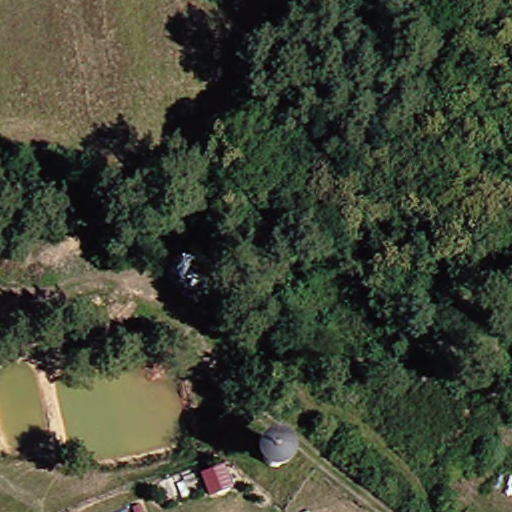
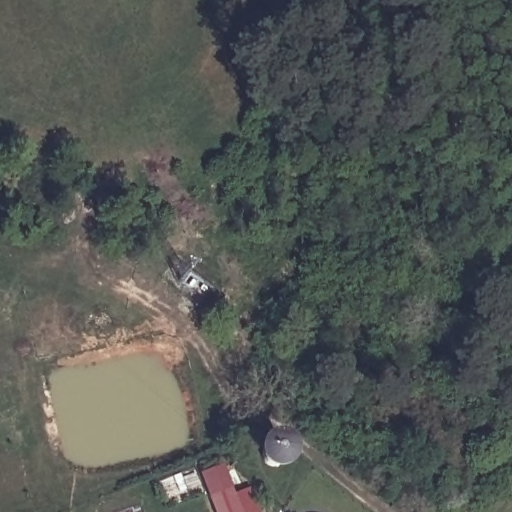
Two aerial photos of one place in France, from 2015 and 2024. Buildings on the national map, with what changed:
new [(224,467),(236,492),(253,486),(261,512),(216,512),(201,474),(224,467)]

